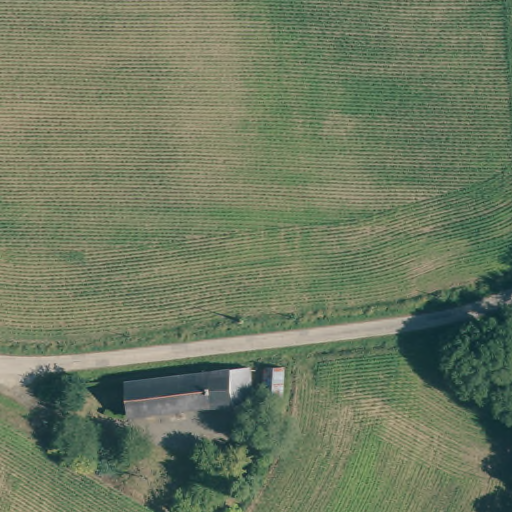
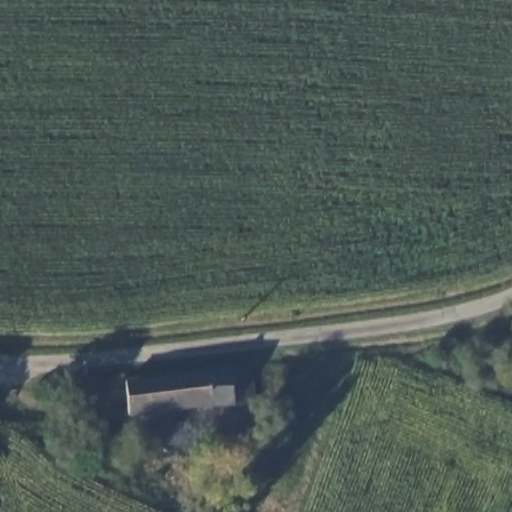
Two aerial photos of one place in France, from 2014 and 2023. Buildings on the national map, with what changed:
unchanged [(224,365),(230,401),(128,411),(121,376),(224,365)]
unchanged [(258,405),(256,373),(274,371),(275,405),(258,405)]

